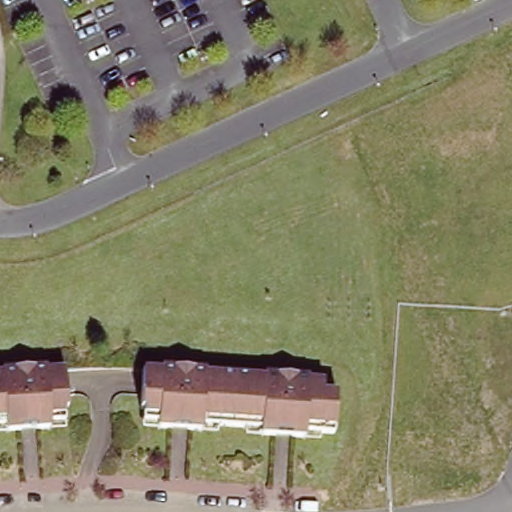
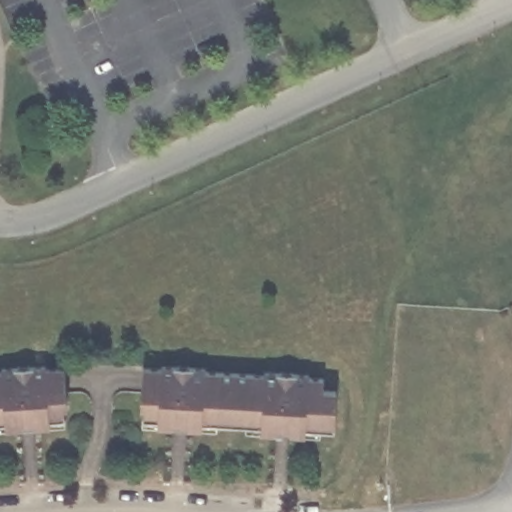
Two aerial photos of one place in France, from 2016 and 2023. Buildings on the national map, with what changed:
unchanged [(259,433),(259,427),(204,423),(203,429),(187,427),(174,426),(157,425),(158,419),(145,418),(145,406),(141,406),(142,391),(144,365),(162,366),(162,363),(206,367),(205,370),(265,375),(265,372),(307,375),(307,378),(325,379),(324,391),(337,392),(335,433),(306,431),(305,436),(290,435),(276,434),(259,433)]
unchanged [(4,370),(4,366),(47,364),(47,366),(65,365),(67,389),(67,405),(64,405),(65,419),(50,420),(50,425),(36,426),(22,427),(7,428),(7,422),(0,423),(0,370),(4,370)]

